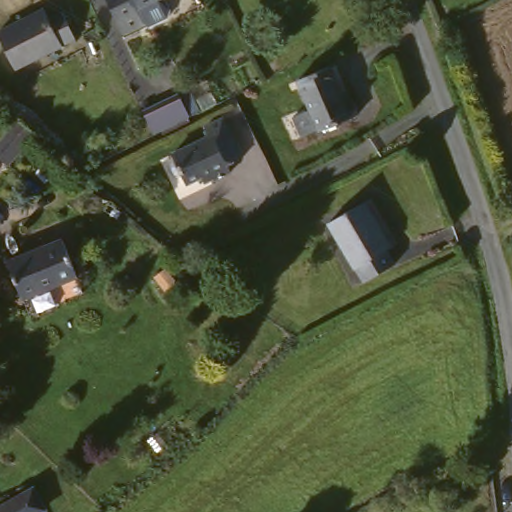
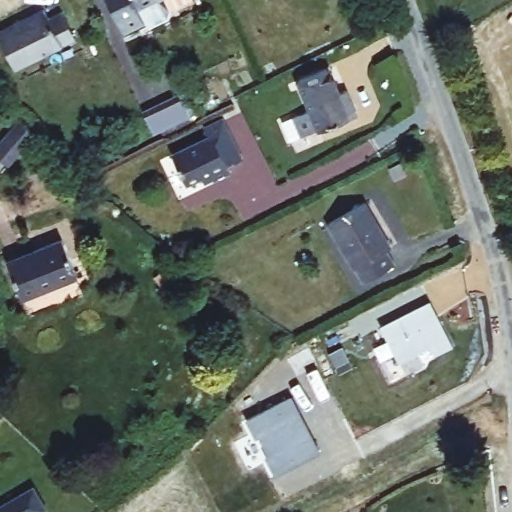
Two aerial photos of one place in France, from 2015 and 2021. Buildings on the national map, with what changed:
unchanged [(148,24),(123,35),(109,0),(158,0),(141,8),(148,24)]
unchanged [(54,19),(61,14),(74,43),(12,69),(0,42),(0,30),(48,7),(54,19)]
unchanged [(325,65),(335,90),(341,88),(352,119),(312,134),(291,78),(325,65)]
unchanged [(198,114),(153,133),(142,109),(188,91),(198,114)]
unchanged [(243,160),(188,186),(173,153),(206,135),(204,124),(221,115),(243,160)]
unchanged [(10,166),(0,159),(0,145),(19,119),(35,133),(10,166)]
unchanged [(384,250),(392,263),(366,282),(326,227),(357,204),(388,246),(384,250)]
unchanged [(76,274),(26,304),(5,270),(55,241),(76,274)]
new [(430,345),(399,361),(382,327),(432,302),(452,343),(435,354),(430,345)]
new [(342,349),(348,362),(335,368),(329,355),(342,349)]
new [(290,397),(320,453),(274,477),(264,458),(268,456),(258,437),(255,439),(244,421),(290,397)]
unchanged [(44,511),(42,512),(1,512),(31,491),(44,511)]

